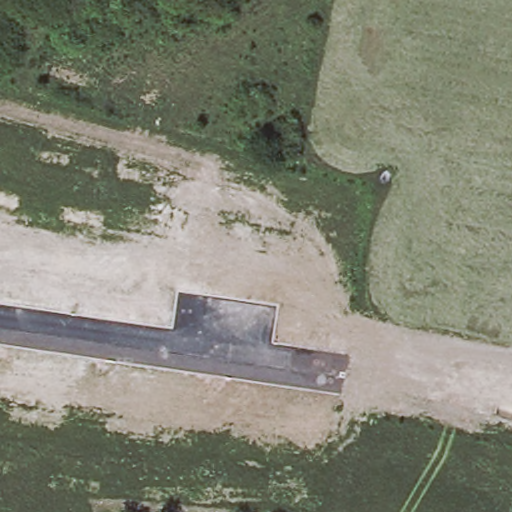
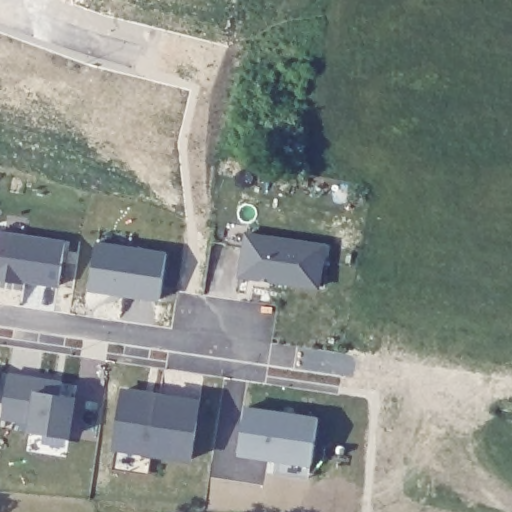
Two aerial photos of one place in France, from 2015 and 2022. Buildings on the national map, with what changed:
new [(59,287),(0,280),(0,230),(66,238),(59,287)]
new [(321,290),(239,276),(246,231),(328,243),(321,290)]
new [(65,381),(64,395),(77,398),(72,438),(29,432),(30,423),(1,419),(9,372),(65,381)]
new [(195,463),(152,455),(149,475),(111,470),(113,450),(122,387),(202,398),(195,463)]
new [(312,466),(311,478),(273,475),(275,461),(239,456),(246,406),(319,416),(312,466)]

